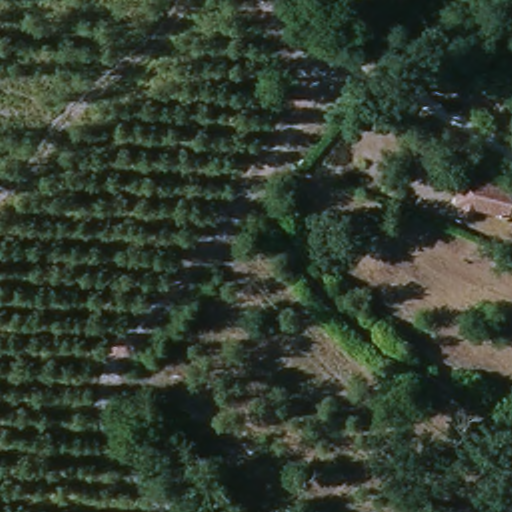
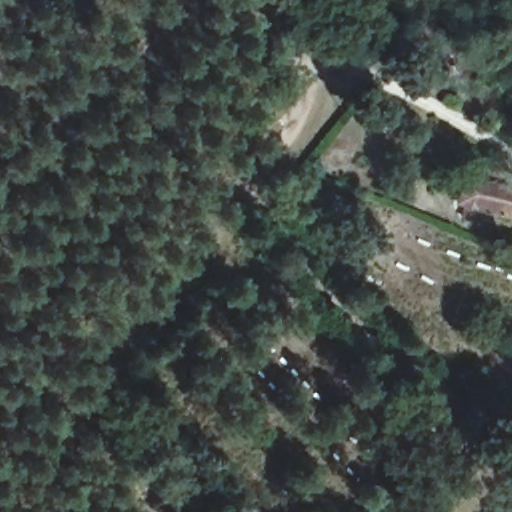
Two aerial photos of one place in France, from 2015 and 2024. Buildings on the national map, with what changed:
unchanged [(512,191),(512,196),(503,222),(453,201),(463,173),(512,191)]

